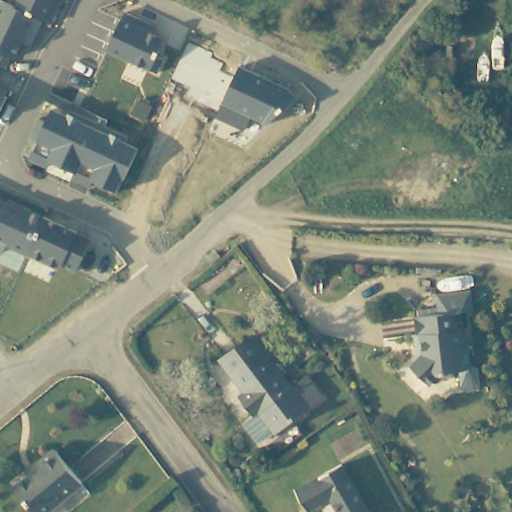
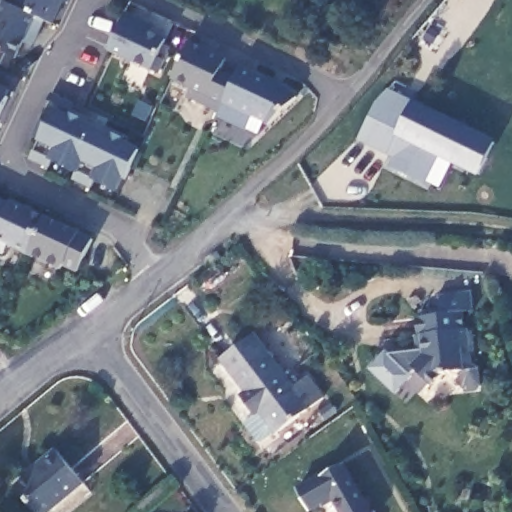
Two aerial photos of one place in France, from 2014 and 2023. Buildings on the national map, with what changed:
unchanged [(43,21),(31,46),(23,42),(15,57),(0,50),(0,9),(3,2),(15,7),(19,0),(62,0),(50,24),(43,21)]
unchanged [(122,18),(124,11),(152,24),(149,31),(165,39),(157,58),(165,61),(157,75),(107,50),(122,18)]
unchanged [(222,105),(219,111),(186,96),(191,87),(172,80),(191,40),(228,56),(222,69),(235,75),(222,105)]
unchanged [(286,87),(298,99),(269,124),(251,117),(245,130),(215,117),(222,105),(240,66),(286,87)]
unchanged [(0,111),(0,85),(10,90),(0,111)]
new [(478,176),(436,159),(426,183),(390,165),(392,158),(356,139),(376,99),(387,89),(411,101),(492,141),(478,176)]
unchanged [(109,120),(105,126),(128,137),(125,142),(139,148),(118,191),(91,180),(87,187),(72,182),(76,175),(50,164),(47,168),(30,160),(37,144),(54,110),(55,105),(48,101),(50,94),(109,120)]
unchanged [(10,197),(40,213),(77,231),(93,239),(77,271),(64,265),(62,270),(26,255),(7,246),(4,255),(0,253),(0,197),(10,202),(10,197)]
unchanged [(467,331),(470,348),(464,350),(465,370),(447,373),(446,376),(440,377),(430,387),(411,368),(420,361),(421,357),(418,357),(415,337),(420,337),(416,321),(441,317),(438,297),(472,292),(475,312),(461,315),(465,331),(467,331)]
unchanged [(295,385),(308,376),(323,396),(278,430),(264,410),(260,413),(245,394),(249,391),(226,360),(258,335),(295,385)]
unchanged [(42,460),(40,456),(55,444),(82,477),(40,512),(39,512),(14,482),(42,460)]
unchanged [(342,460),(373,512),(344,512),(332,491),(310,505),(297,485),(342,460)]

